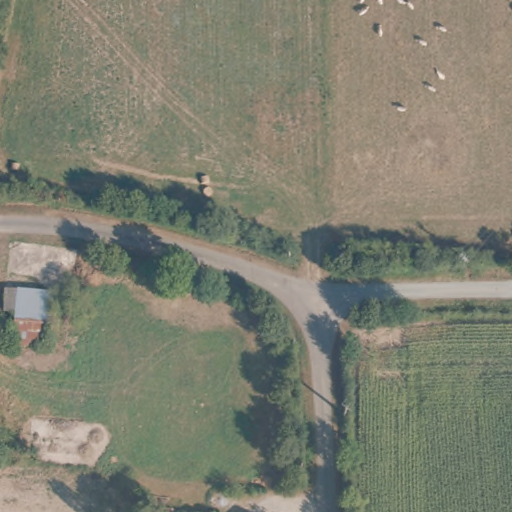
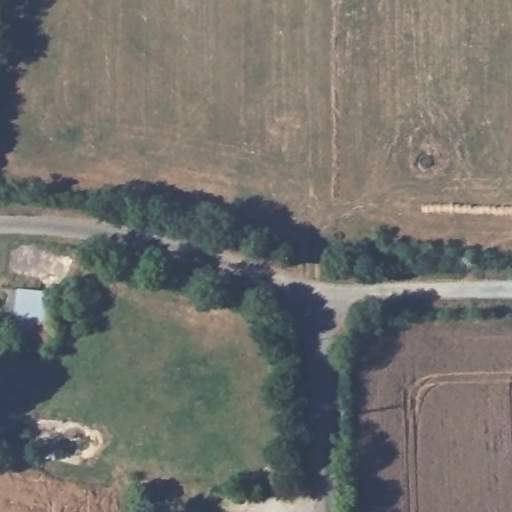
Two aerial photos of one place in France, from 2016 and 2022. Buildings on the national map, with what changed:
unchanged [(19,317),(8,317),(10,293),(56,297),(51,353),(16,350),(19,317)]

